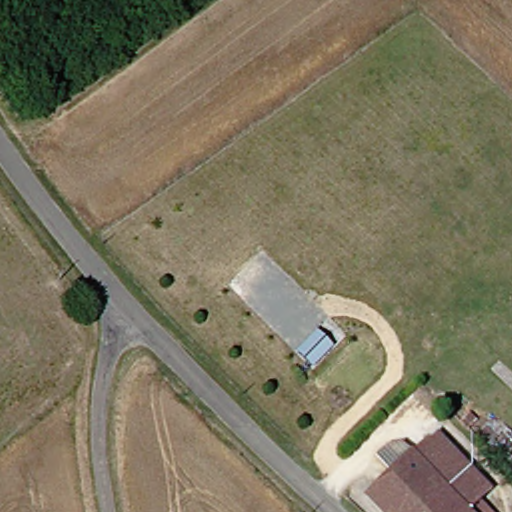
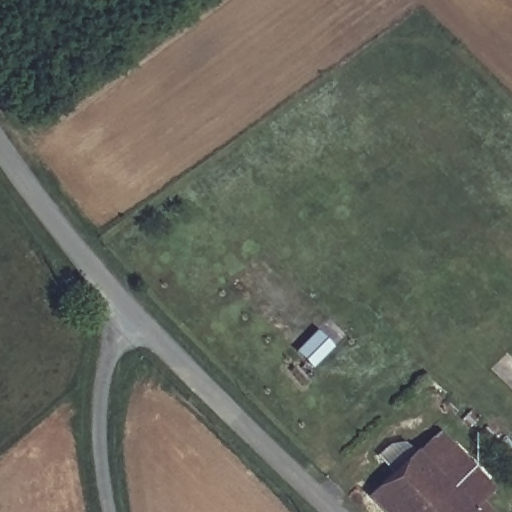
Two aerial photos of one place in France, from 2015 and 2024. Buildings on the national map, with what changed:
unchanged [(335,341),(317,359),(304,345),(321,327),(335,341)]
unchanged [(434,432),(490,490),(477,502),(487,512),(375,512),(362,499),(434,432)]

